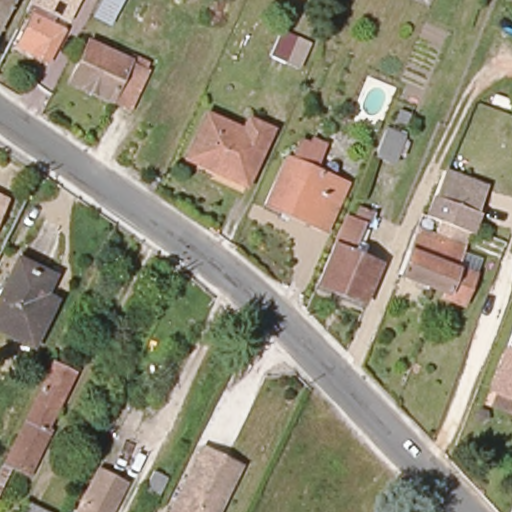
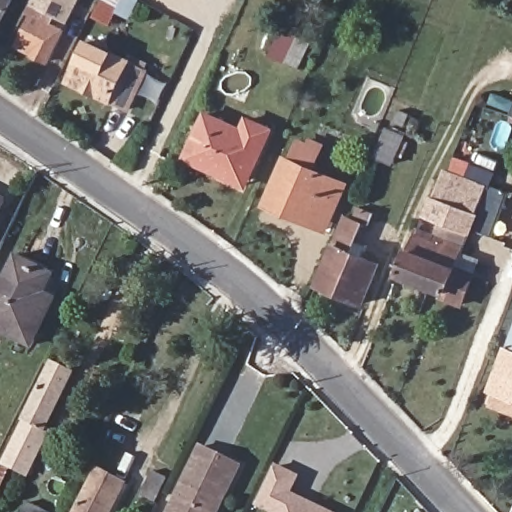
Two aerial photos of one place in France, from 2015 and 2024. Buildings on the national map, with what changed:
unchanged [(0,26),(0,0),(11,6),(0,26)]
unchanged [(30,12),(36,0),(82,0),(69,24),(55,15),(51,24),(65,31),(47,62),(17,45),(34,15),(30,12)]
unchanged [(121,0),(122,0),(115,15),(93,6),(96,0),(121,0)]
unchanged [(70,79),(91,40),(148,70),(127,110),(70,79)]
unchanged [(287,65),(297,40),(310,46),(300,71),(287,65)]
unchanged [(205,110),(250,130),(254,123),(272,132),(249,183),(186,154),(205,110)]
unchanged [(405,160),(396,155),(390,166),(374,159),(387,130),(402,138),(412,142),(405,160)]
unchanged [(328,232),(260,209),(287,152),(296,155),(306,132),(327,143),(317,166),(351,184),(328,232)]
unchanged [(477,275),(462,305),(442,297),(446,291),(400,274),(416,234),(418,228),(433,234),(437,221),(427,218),(445,170),(489,186),(460,255),(482,262),(477,275)]
unchanged [(5,195),(0,204),(0,193),(5,195)]
unchanged [(373,218),(367,231),(361,230),(351,255),(380,268),(365,307),(313,288),(343,224),(347,225),(355,210),(373,218)]
unchanged [(0,325),(0,288),(15,255),(45,271),(36,292),(49,298),(29,338),(0,325)]
unchanged [(512,404),(485,393),(512,327),(512,404)]
unchanged [(4,464),(52,361),(74,371),(47,426),(49,427),(25,476),(4,464)]
unchanged [(201,445),(229,458),(238,463),(215,512),(169,512),(201,445)]
unchanged [(129,485),(113,512),(72,512),(97,463),(129,485)]
new [(256,505),(277,464),(301,475),(292,492),(334,512),(269,512),(256,505)]
unchanged [(157,507),(139,498),(155,466),(172,475),(157,507)]

